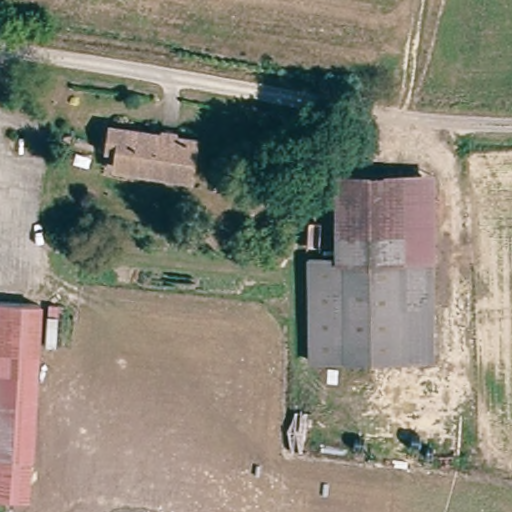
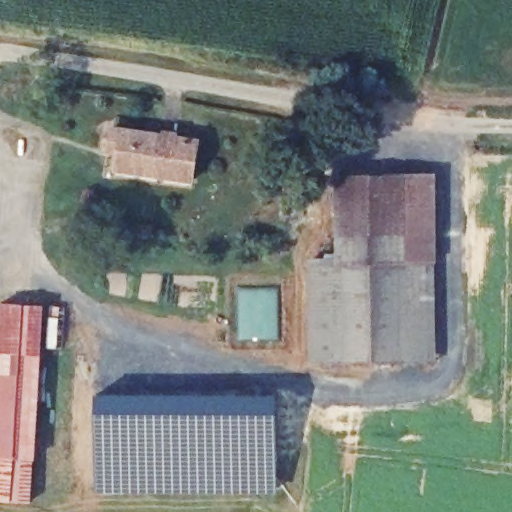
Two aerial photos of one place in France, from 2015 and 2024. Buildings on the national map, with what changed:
unchanged [(199,177),(122,167),(124,151),(110,149),(113,126),(204,138),(199,177)]
unchanged [(425,257),(422,257),(426,357),(336,361),(332,261),(360,260),(356,175),(421,172),(425,257)]
unchanged [(0,500),(0,405),(6,303),(46,305),(34,503),(0,500)]
new [(94,492),(94,397),(275,397),(276,494),(94,492)]

